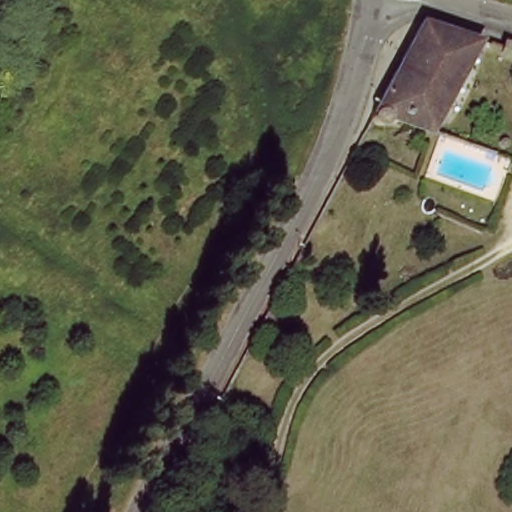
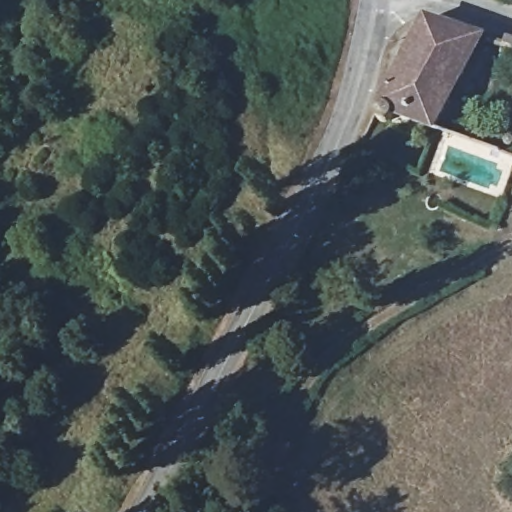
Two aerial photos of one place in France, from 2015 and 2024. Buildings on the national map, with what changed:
unchanged [(433,21),(484,38),(442,130),(400,114),(398,122),(395,128),(389,130),(383,128),(379,124),(433,21)]
unchanged [(512,48),(512,67),(502,63),(507,46),(512,48)]

